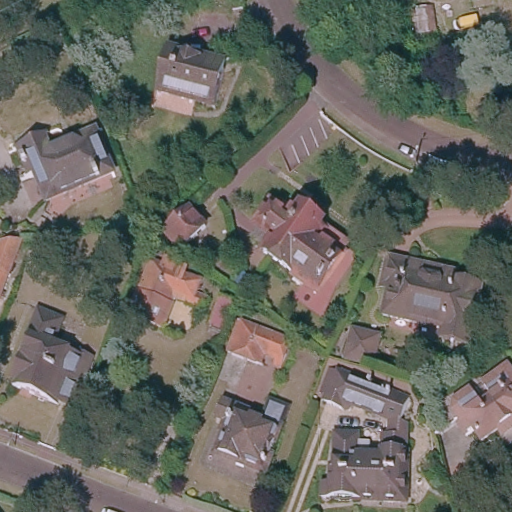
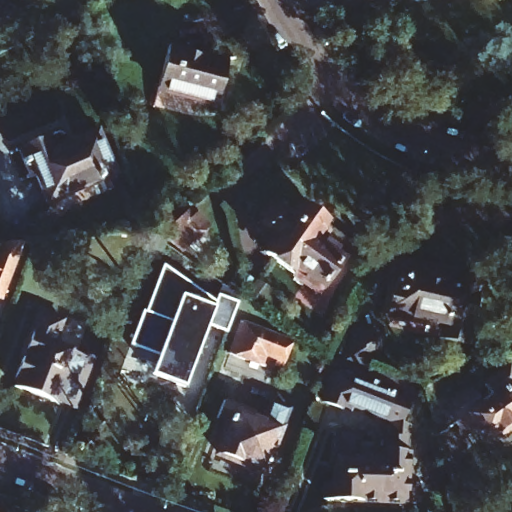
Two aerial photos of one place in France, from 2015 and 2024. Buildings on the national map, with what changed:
unchanged [(153,97),(157,79),(168,38),(205,49),(203,55),(218,59),(225,61),(215,94),(199,90),(195,107),(153,97)]
unchanged [(13,162),(12,157),(57,137),(63,152),(107,132),(126,172),(62,201),(50,174),(25,184),(22,179),(28,177),(20,159),(13,162)]
unchanged [(205,227),(187,247),(172,231),(191,211),(205,227)]
unchanged [(320,293),(265,257),(277,241),(260,230),(266,222),(262,220),(265,216),(270,217),(275,211),(289,221),(295,213),(312,225),(322,222),(332,230),(332,240),(349,252),(320,293)]
unchanged [(7,244),(30,242),(5,306),(0,303),(0,261),(7,244)]
unchanged [(475,288),(468,336),(440,330),(442,320),(420,315),(418,319),(384,312),(390,285),(382,283),(388,253),(412,258),(459,267),(457,278),(470,281),(475,288)]
demolished [(149,256),(165,261),(167,255),(197,266),(195,275),(206,278),(203,289),(213,293),(208,312),(180,305),(170,332),(123,321),(149,256)]
new [(145,311),(148,312),(165,266),(218,303),(222,295),(240,302),(229,332),(212,327),(197,362),(187,387),(153,375),(160,356),(132,346),(145,311)]
unchanged [(22,358),(16,356),(34,309),(59,318),(49,343),(74,352),(75,347),(93,353),(73,403),(57,398),(57,400),(27,389),(30,382),(15,377),(22,358)]
unchanged [(292,340),(283,368),(275,366),(278,358),(262,352),(258,362),(229,352),(240,320),(292,340)]
unchanged [(377,363),(350,357),(357,326),(383,333),(377,363)]
unchanged [(405,410),(389,402),(375,395),(368,405),(346,393),(342,399),(320,387),(335,364),(393,393),(409,401),(405,410)]
unchanged [(497,427),(482,437),(478,431),(470,437),(460,423),(492,397),(482,387),(507,368),(512,375),(512,423),(500,431),(497,427)]
unchanged [(217,456),(228,432),(217,427),(211,425),(218,403),(247,416),(245,425),(260,431),(264,423),(284,431),(265,475),(217,456)]
unchanged [(351,504),(310,501),(312,483),(321,483),(324,465),(327,465),(330,432),(352,436),(351,446),(362,447),(362,457),(380,458),(380,452),(400,454),(398,475),(395,507),(351,504)]

